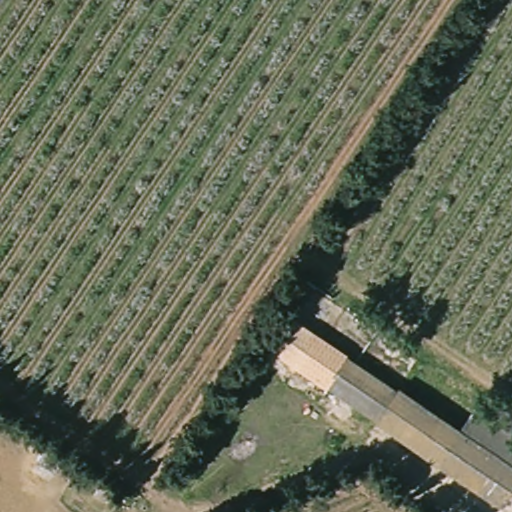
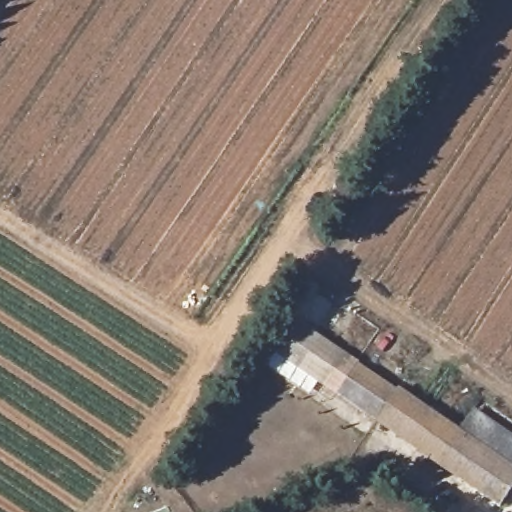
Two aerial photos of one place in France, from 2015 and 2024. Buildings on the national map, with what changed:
unchanged [(477,407),(512,431),(512,486),(502,501),(271,348),(294,313),(464,425),(477,407)]

